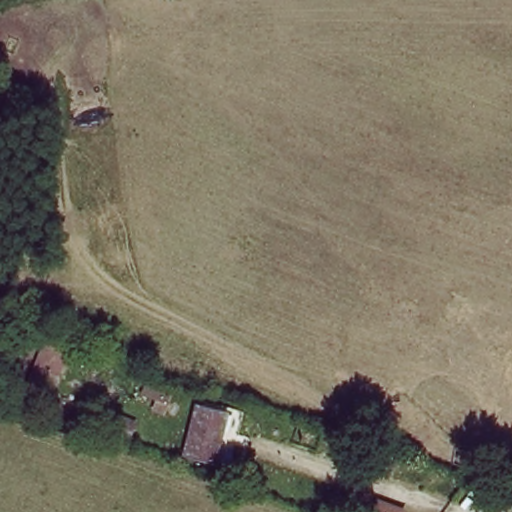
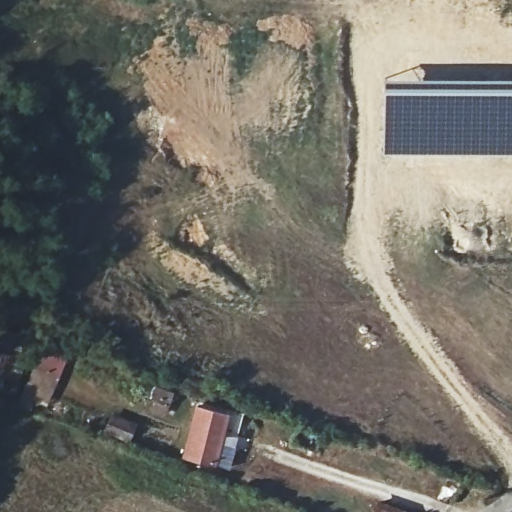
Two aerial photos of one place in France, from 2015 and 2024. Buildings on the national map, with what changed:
new [(395,76),(418,78),(512,77),(512,155),(383,154),(381,78),(395,76)]
unchanged [(5,407),(9,393),(33,399),(29,413),(5,407)]
unchanged [(195,406),(223,411),(214,462),(186,457),(195,406)]

